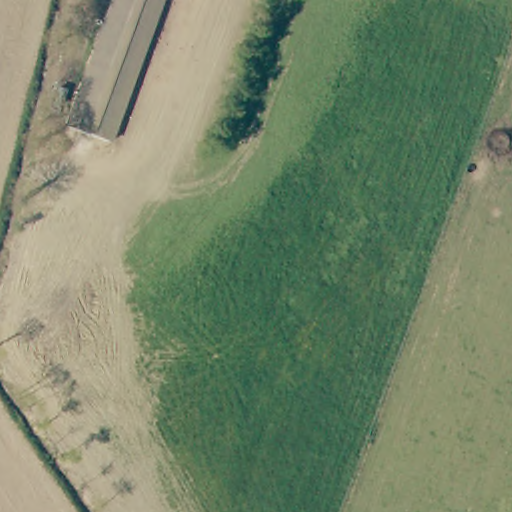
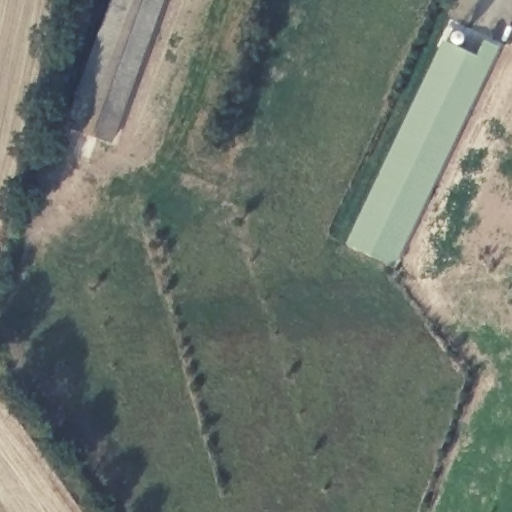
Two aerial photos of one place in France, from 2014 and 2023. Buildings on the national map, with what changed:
unchanged [(115,0),(162,0),(112,141),(68,126),(115,0)]
new [(450,35),(477,48),(484,33),(496,39),(391,261),(348,241),(450,35)]

